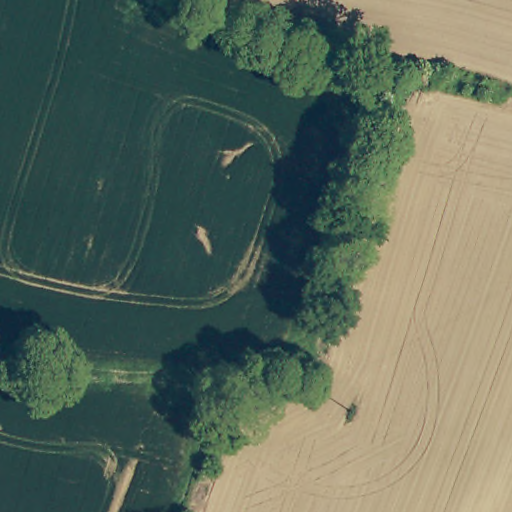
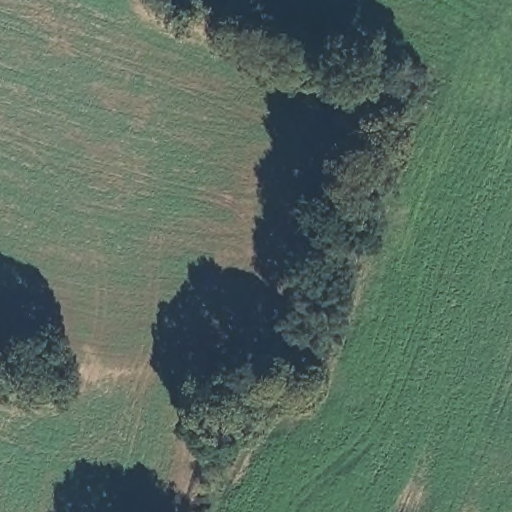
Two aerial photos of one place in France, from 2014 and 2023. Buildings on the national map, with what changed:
[]

